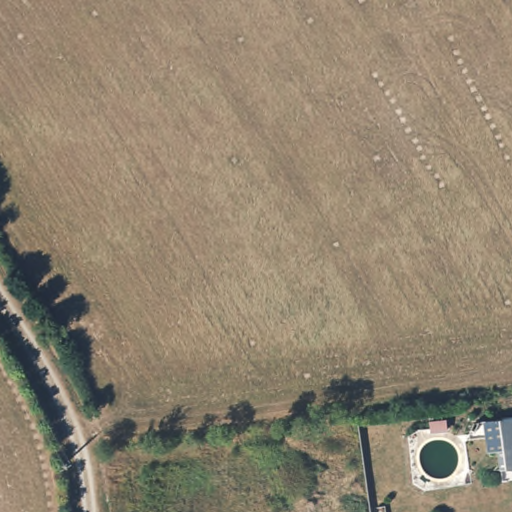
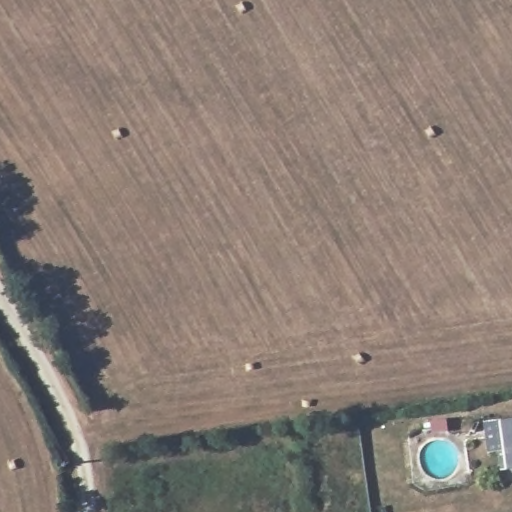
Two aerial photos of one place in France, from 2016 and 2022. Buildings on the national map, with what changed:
unchanged [(512,421),(512,474),(503,423),(512,421)]

